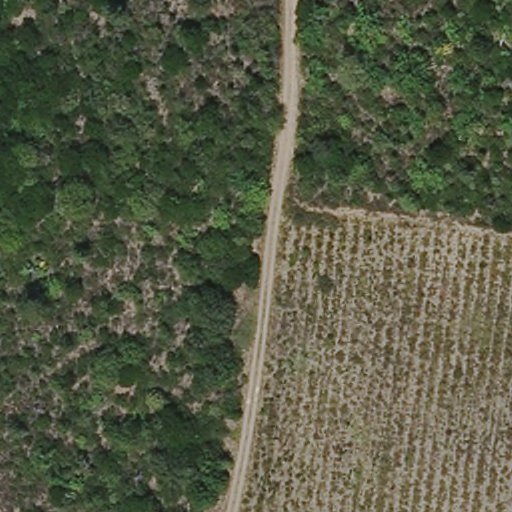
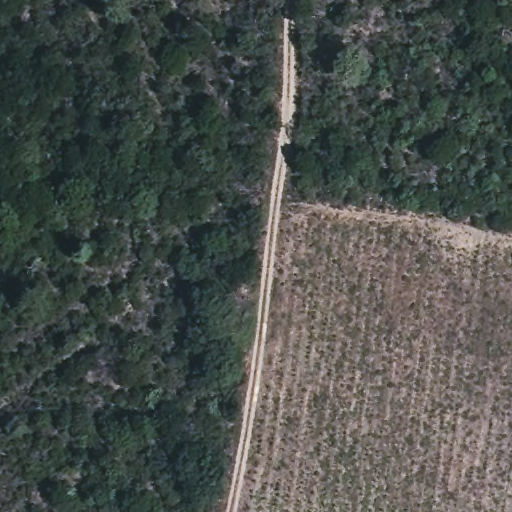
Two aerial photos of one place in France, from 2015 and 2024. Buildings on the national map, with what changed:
[]

